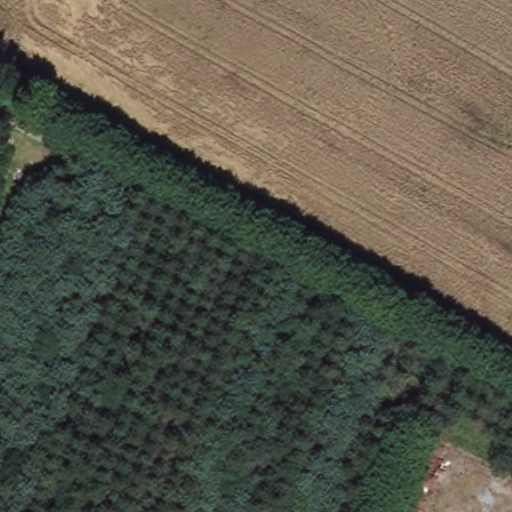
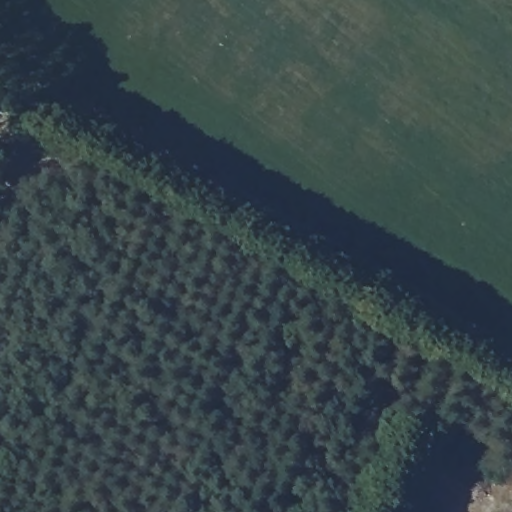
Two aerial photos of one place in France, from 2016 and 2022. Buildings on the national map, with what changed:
unchanged [(59,122),(48,142),(11,122),(22,105),(59,122)]

